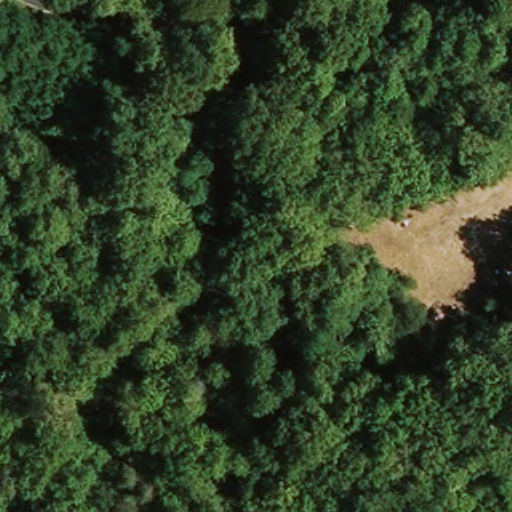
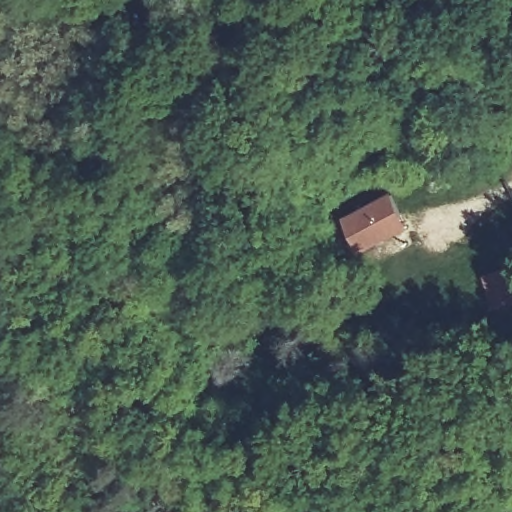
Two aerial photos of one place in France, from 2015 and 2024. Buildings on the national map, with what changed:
new [(359,253),(342,219),(391,195),(408,229),(359,253)]
new [(512,266),(512,301),(496,307),(486,274),(512,266)]

